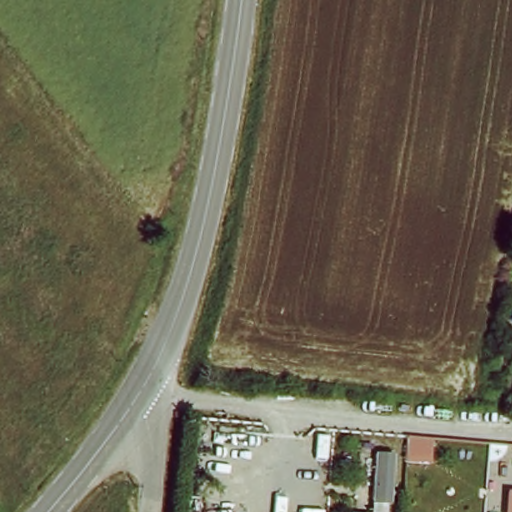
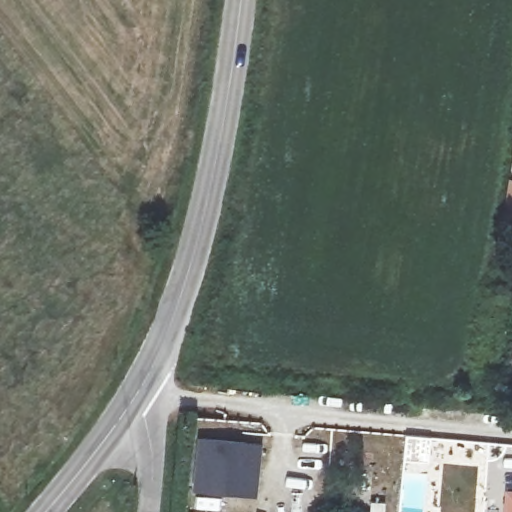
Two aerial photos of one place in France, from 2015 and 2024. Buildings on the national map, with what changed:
new [(263,443),(257,498),(192,490),(198,435),(263,443)]
unchanged [(512,491),(512,512),(504,512),(504,490),(512,491)]

